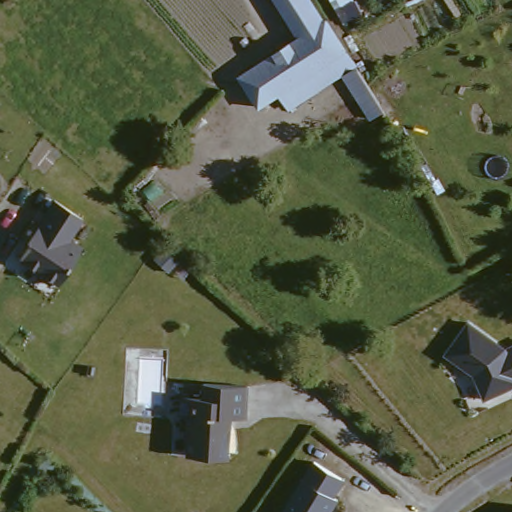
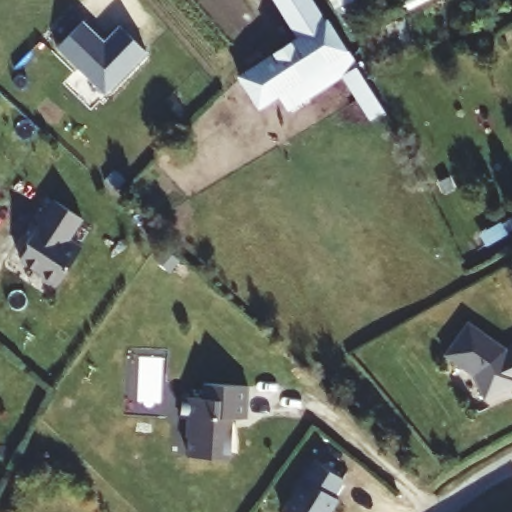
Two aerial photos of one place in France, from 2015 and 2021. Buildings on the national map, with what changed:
unchanged [(362,117),(337,79),(285,111),(275,97),(255,110),(237,83),(235,78),(293,39),(270,0),(307,0),(320,21),(322,20),(351,70),(375,107),(362,117)]
new [(85,21),(97,33),(94,35),(104,45),(122,26),(148,52),(105,94),(59,46),(85,21)]
unchanged [(60,246),(73,255),(48,291),(46,290),(41,290),(32,284),(31,279),(11,265),(19,253),(18,248),(12,244),(23,229),(29,232),(46,206),(74,225),(60,246)]
unchanged [(508,347),(512,345),(512,387),(482,400),(473,375),(442,355),(469,317),(508,347)]
unchanged [(238,428),(239,437),(237,450),(230,450),(229,456),(188,454),(189,438),(187,435),(188,416),(181,415),(182,395),(203,396),(204,381),(247,383),(245,415),(232,415),(236,424),(238,428)]
unchanged [(317,463),(346,482),(335,498),(339,501),(333,512),(286,512),(285,511),(317,463)]
unchanged [(511,512),(512,511),(512,512),(511,512)]

